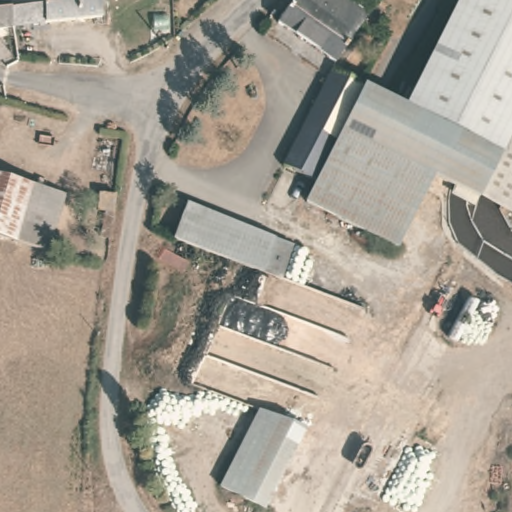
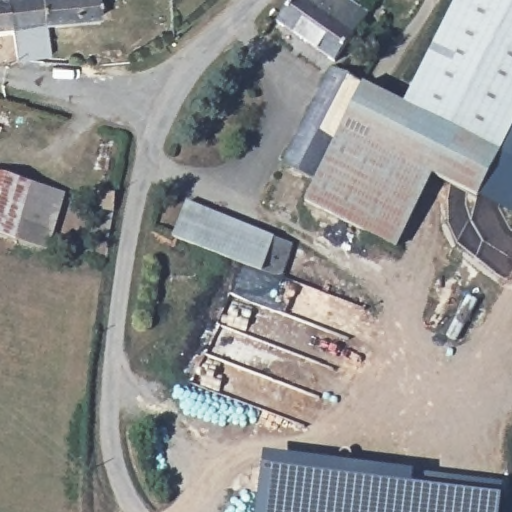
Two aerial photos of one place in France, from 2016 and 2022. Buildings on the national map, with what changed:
unchanged [(7,26),(0,27),(0,0),(5,0),(7,26)]
unchanged [(101,17),(7,26),(5,0),(100,0),(101,17)]
unchanged [(367,12),(353,35),(361,40),(346,62),(337,56),(333,60),(281,22),(297,0),(349,0),(367,12)]
unchanged [(401,105),(459,0),(512,0),(512,122),(493,156),(401,105)]
unchanged [(332,67),(362,82),(311,176),(282,161),(332,67)]
unchanged [(432,180),(397,250),(307,203),(320,180),(311,176),(362,82),(401,105),(493,156),(470,201),(432,180)]
unchanged [(470,201),(493,156),(512,122),(512,221),(470,201)]
unchanged [(0,236),(0,176),(32,189),(12,241),(0,236)]
unchanged [(32,189),(64,200),(44,254),(12,241),(32,189)]
unchanged [(306,251),(291,287),(162,234),(177,196),(306,251)]
unchanged [(108,227),(92,223),(96,205),(112,210),(108,227)]
new [(256,512),(262,453),(502,483),(499,512),(256,512)]

